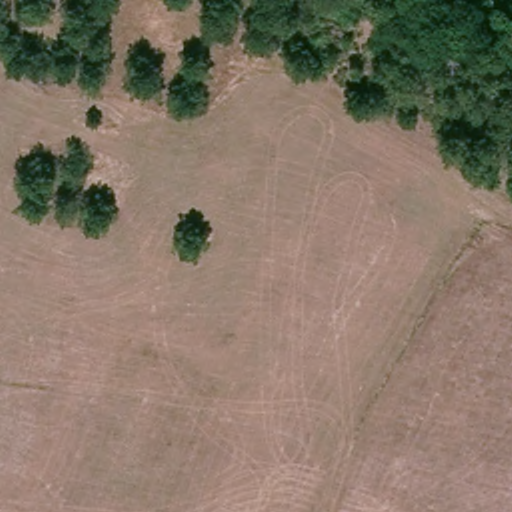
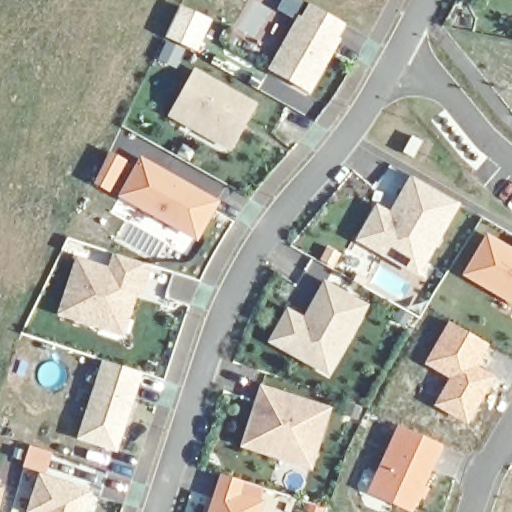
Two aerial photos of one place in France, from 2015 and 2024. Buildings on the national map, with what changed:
new [(310,94),(270,69),(300,16),(303,18),(309,4),(346,25),(339,38),(341,39),(310,94)]
new [(169,115),(196,68),(257,103),(230,151),(169,115)]
new [(119,196),(141,156),(221,202),(198,241),(119,196)]
new [(357,240),(378,204),(392,211),(412,176),(460,203),(418,277),(357,240)]
new [(484,240),(512,249),(512,305),(463,276),(484,240)]
new [(124,337),(59,315),(78,257),(110,267),(114,254),(151,265),(143,296),(138,294),(124,337)]
new [(269,342),(289,309),(306,317),(325,282),(370,306),(329,375),(269,342)]
new [(78,440),(103,361),(144,372),(118,452),(78,440)]
new [(241,447),(261,386),(333,409),(312,471),(241,447)]
new [(400,426),(445,446),(427,485),(432,488),(426,500),(421,498),(415,512),(408,512),(368,494),(400,426)]
new [(40,475),(92,491),(85,512),(27,512),(40,475)]
new [(221,475),(245,482),(242,494),(263,502),(260,512),(209,512),(221,475)]
new [(0,504),(0,487),(4,489),(0,504)]

